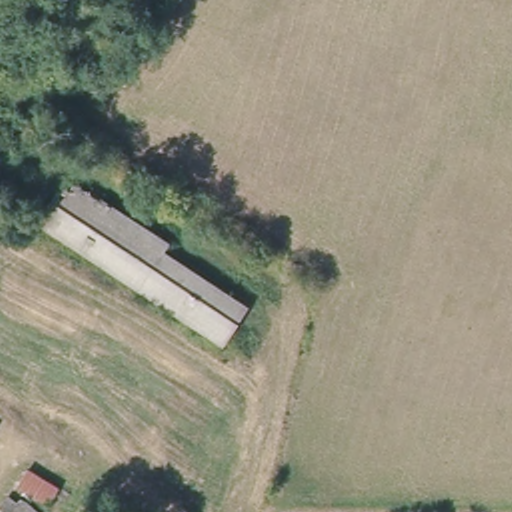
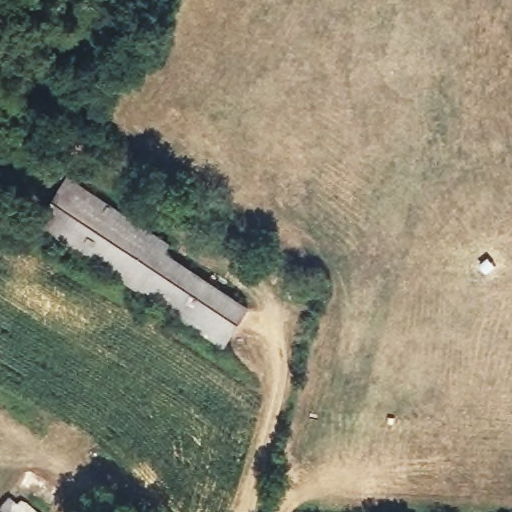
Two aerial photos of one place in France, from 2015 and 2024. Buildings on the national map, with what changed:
unchanged [(169,245),(168,251),(247,306),(223,347),(44,225),(75,180),(169,245)]
unchanged [(16,493),(26,479),(48,490),(41,505),(16,493)]
unchanged [(8,512),(12,507),(16,511),(24,508),(30,512),(8,512)]

